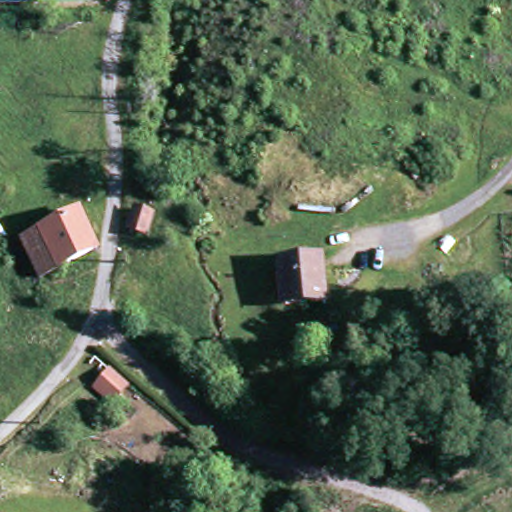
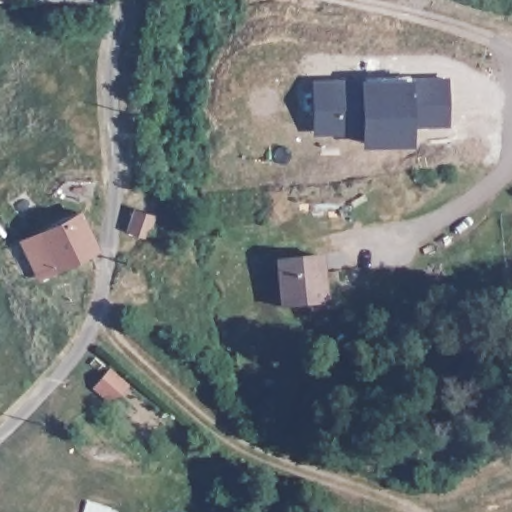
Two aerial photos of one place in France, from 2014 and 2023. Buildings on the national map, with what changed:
unchanged [(38,2),(38,0),(94,0),(94,2),(38,2)]
new [(449,126),(413,127),(413,142),(362,144),(361,128),(312,134),(311,77),(360,75),(411,74),(447,74),(449,126)]
unchanged [(93,253),(36,281),(18,244),(75,216),(93,253)]
unchanged [(118,234),(122,235),(123,229),(130,230),(128,236),(134,237),(131,251),(115,247),(118,234)]
unchanged [(325,305),(276,308),(273,265),(322,262),(325,305)]
new [(126,388),(114,404),(95,390),(110,374),(126,388)]

